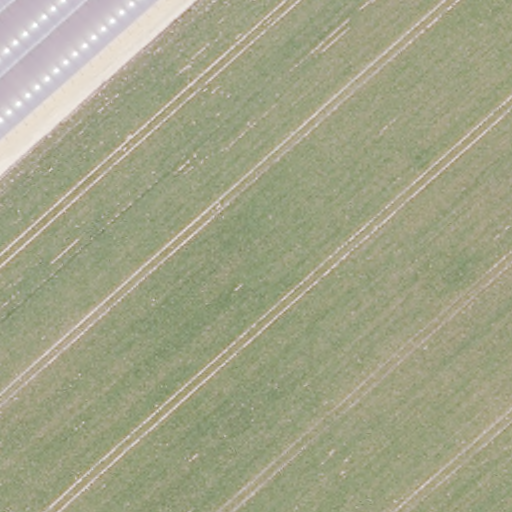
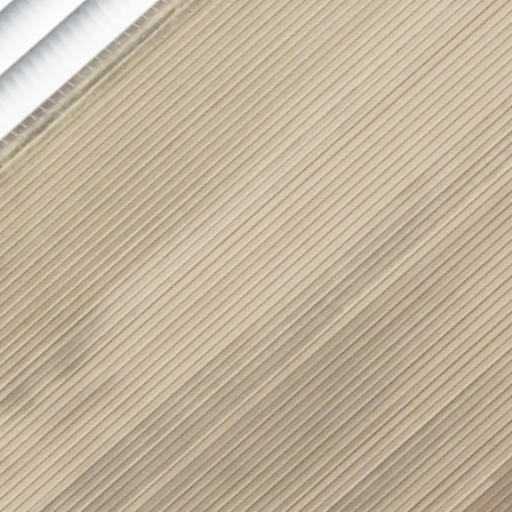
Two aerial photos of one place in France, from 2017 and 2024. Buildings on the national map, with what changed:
unchanged [(0,135),(0,0),(153,0),(0,135)]

